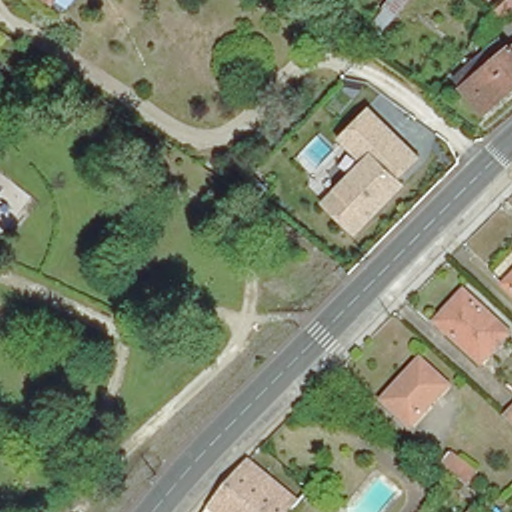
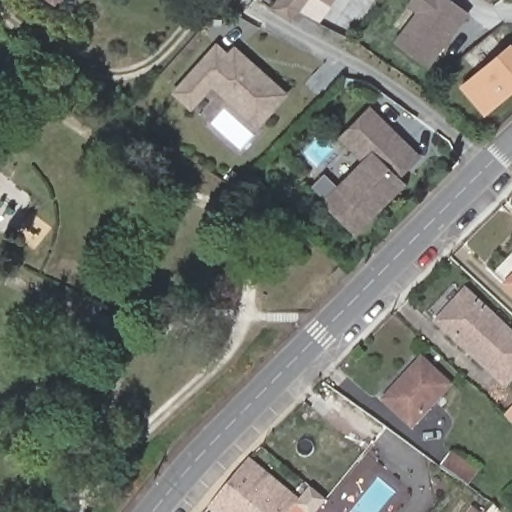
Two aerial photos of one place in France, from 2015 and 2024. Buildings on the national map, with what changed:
new [(272,7),(277,0),(309,0),(292,23),(272,7)]
new [(321,0),(335,0),(331,7),(321,0)]
demolished [(403,0),(369,45),(361,36),(388,0),(403,0)]
new [(394,42),(416,11),(407,6),(411,0),(453,0),(470,13),(430,69),(394,42)]
unchanged [(512,44),(512,92),(490,111),(466,82),(512,44)]
new [(216,45),(228,55),(235,48),(287,95),(258,126),(212,86),(191,109),(174,94),(216,45)]
unchanged [(404,179),(408,184),(356,238),(323,203),(362,161),(338,138),(372,106),(423,158),(404,179)]
unchanged [(342,262),(353,269),(352,270),(341,263),(342,262)]
unchanged [(341,281),(332,272),(340,264),(349,273),(341,281)]
unchanged [(512,288),(509,285),(512,281),(512,288)]
unchanged [(466,292),(511,333),(482,364),(438,322),(466,292)]
new [(512,379),(506,386),(482,364),(511,333),(512,334),(512,379)]
unchanged [(422,355),(450,381),(413,421),(385,395),(422,355)]
unchanged [(512,410),(512,422),(506,416),(512,410)]
unchanged [(20,454),(22,459),(21,464),(17,467),(10,466),(6,461),(8,454),(14,451),(20,454)]
unchanged [(451,453),(475,471),(466,484),(458,479),(441,467),(451,453)]
unchanged [(286,512),(225,512),(215,503),(214,502),(249,460),(294,497),(286,512)]

